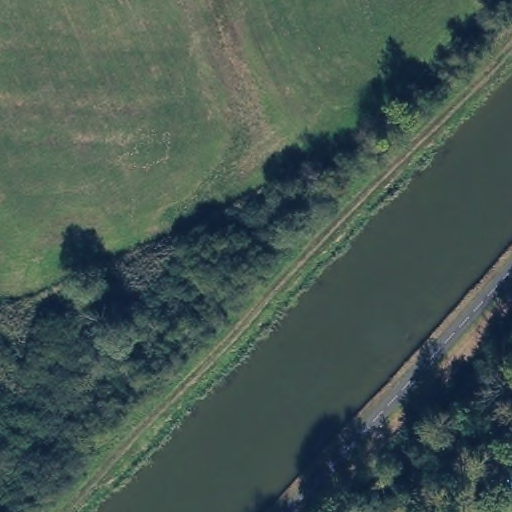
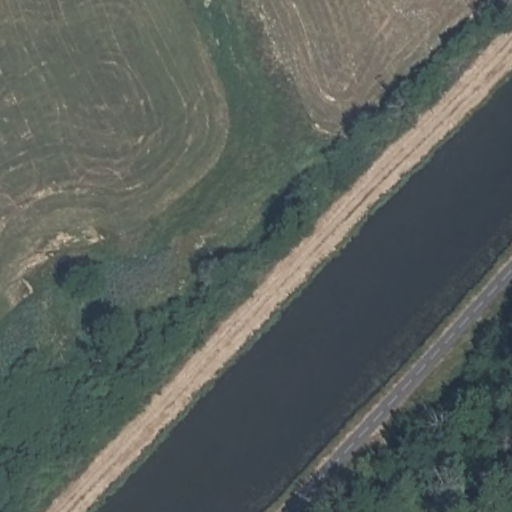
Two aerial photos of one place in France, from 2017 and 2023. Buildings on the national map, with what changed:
unchanged [(512,460),(512,510),(496,510),(495,497),(472,476),(500,450),(512,460)]

